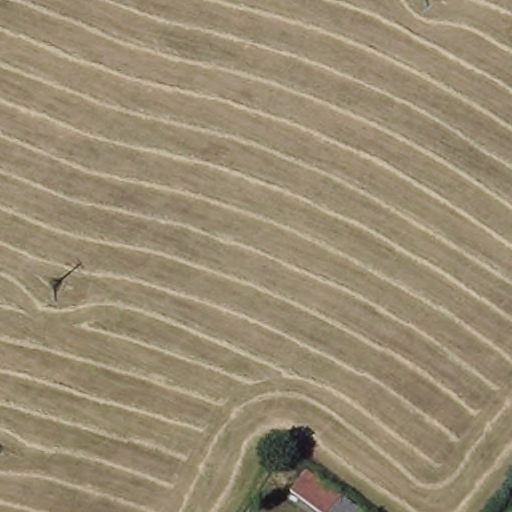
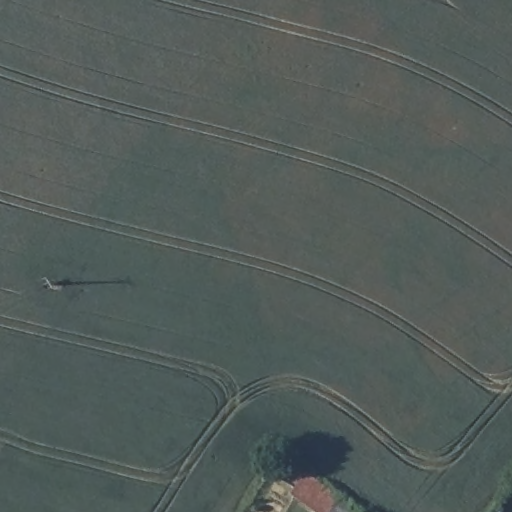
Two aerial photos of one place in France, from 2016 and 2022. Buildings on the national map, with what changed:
unchanged [(326,483),(364,512),(319,512),(310,506),(326,483)]

